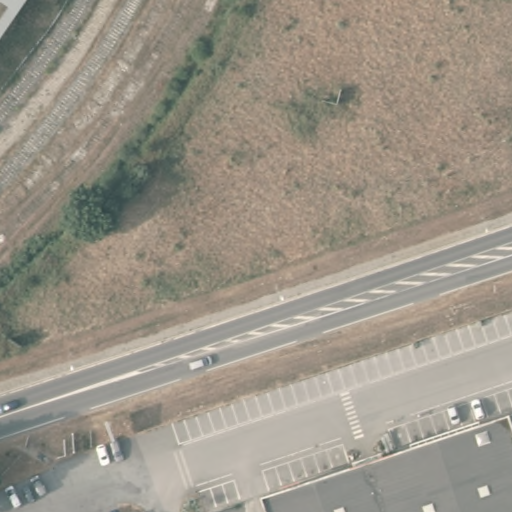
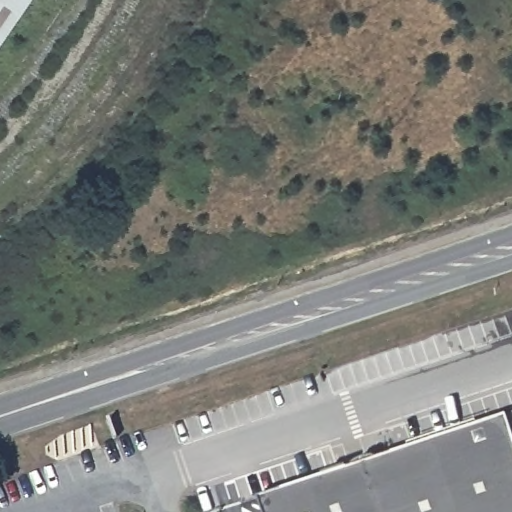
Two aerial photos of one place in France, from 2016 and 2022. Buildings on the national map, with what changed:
unchanged [(0,38),(0,0),(26,0),(0,38)]
unchanged [(501,415),(512,411),(512,449),(505,425),(501,415)]
unchanged [(501,415),(505,425),(512,449),(512,512),(250,512),(248,504),(501,415)]

